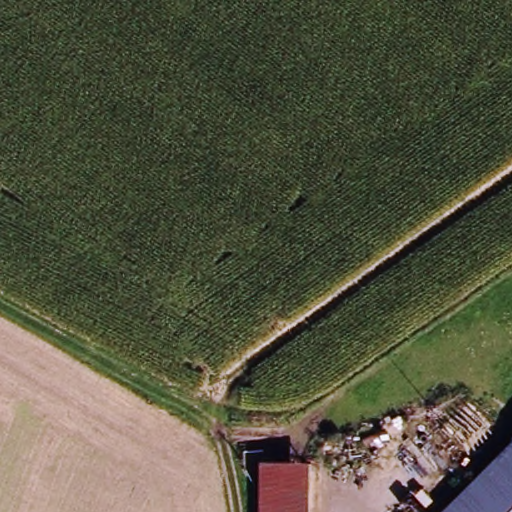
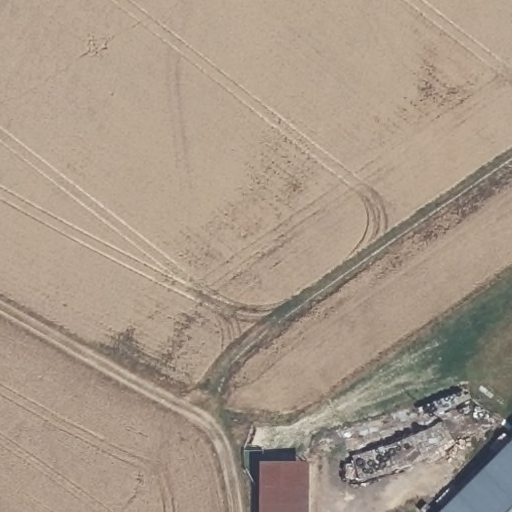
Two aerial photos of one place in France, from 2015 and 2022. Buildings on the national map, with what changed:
unchanged [(433,512),(512,434),(512,512),(433,512)]
unchanged [(303,456),(304,512),(258,512),(257,460),(303,456)]

